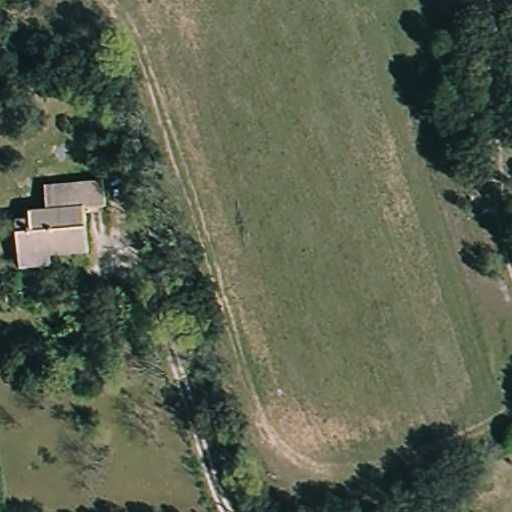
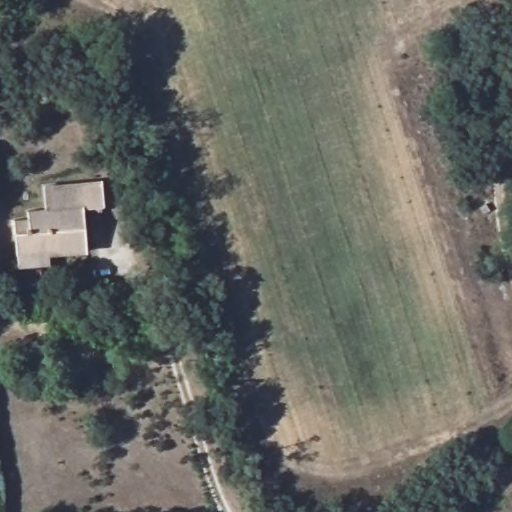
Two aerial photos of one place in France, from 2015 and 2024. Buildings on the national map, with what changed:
unchanged [(21,270),(18,254),(12,224),(28,221),(28,212),(43,208),(39,188),(97,174),(103,204),(80,209),(88,250),(53,257),(50,265),(21,270)]

